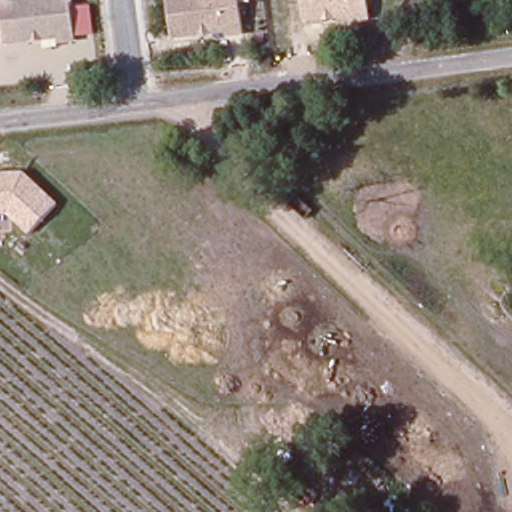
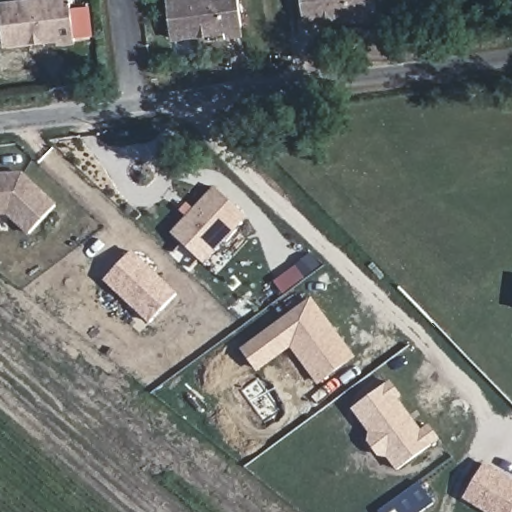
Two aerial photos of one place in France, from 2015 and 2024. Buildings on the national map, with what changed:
unchanged [(76,37),(58,39),(58,35),(4,42),(0,5),(0,0),(71,0),(76,37)]
unchanged [(244,33),(228,34),(227,30),(211,31),(211,28),(202,29),(202,32),(172,35),(170,0),(241,0),(244,33)]
unchanged [(371,17),(353,19),(353,15),(306,21),(303,0),(368,0),(371,17)]
unchanged [(28,235),(7,215),(0,215),(0,172),(24,171),(58,203),(28,235)]
new [(204,263),(174,236),(217,189),(247,217),(204,263)]
new [(176,296),(147,323),(105,281),(131,254),(176,296)]
new [(258,372),(242,350),(311,298),(354,361),(319,386),(292,350),(258,372)]
new [(380,458),(368,442),(370,433),(353,411),(389,382),(399,395),(395,399),(421,432),(430,426),(441,442),(397,471),(387,459),(380,458)]
new [(512,512),(485,512),(463,499),(485,463),(512,478),(512,512)]
new [(423,512),(379,512),(420,483),(435,504),(423,512)]

